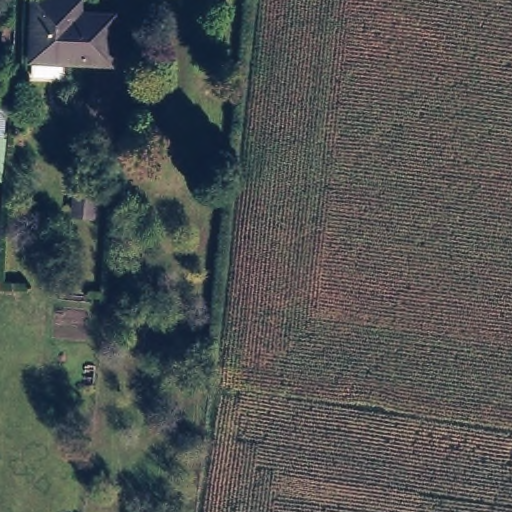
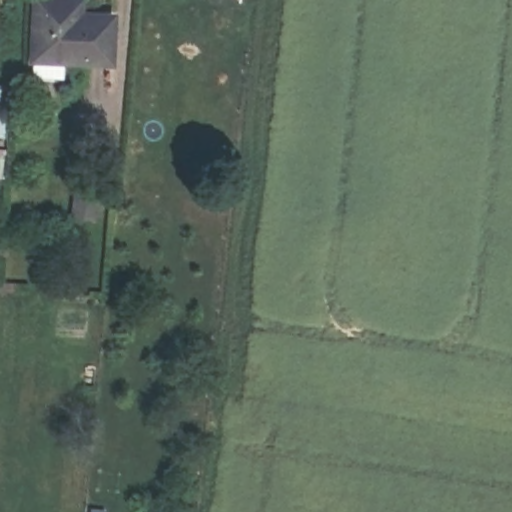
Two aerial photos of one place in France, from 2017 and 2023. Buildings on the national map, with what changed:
unchanged [(112,64),(35,65),(35,6),(62,5),(63,19),(111,19),(112,64)]
unchanged [(75,206),(77,186),(97,188),(95,208),(75,206)]

